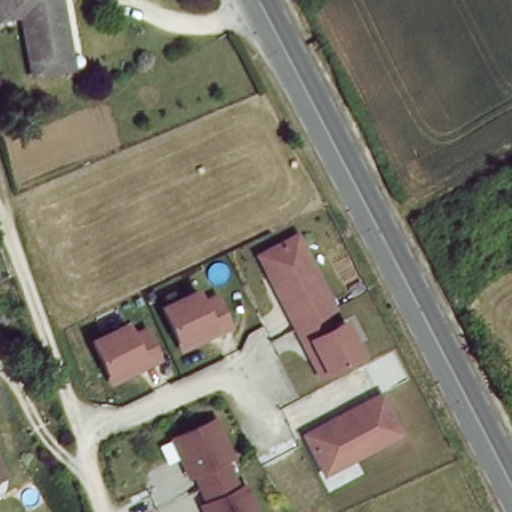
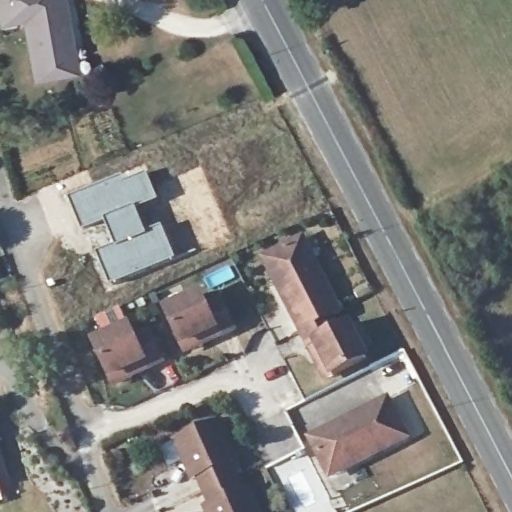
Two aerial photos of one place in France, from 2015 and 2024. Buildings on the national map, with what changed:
unchanged [(33,76),(21,0),(67,0),(75,39),(80,67),(70,69),(33,76)]
new [(122,173),(124,179),(145,170),(157,201),(137,210),(145,231),(162,225),(176,260),(108,288),(93,252),(110,244),(102,226),(81,233),(66,196),(122,173)]
unchanged [(338,308),(328,313),(300,329),(276,285),(261,257),(269,252),(298,237),(338,308)]
unchanged [(187,339),(170,306),(203,287),(209,300),(224,292),(239,320),(224,328),(191,346),(187,339)]
unchanged [(336,327),(348,321),(366,355),(333,372),(315,340),(308,344),(300,329),(328,313),(336,327)]
unchanged [(113,371),(95,337),(129,320),(135,331),(149,324),(164,352),(149,360),(117,377),(113,371)]
unchanged [(409,438),(330,474),(309,433),(390,396),(409,438)]
unchanged [(232,460),(225,462),(231,477),(237,492),(244,490),(253,512),(208,512),(199,490),(179,437),(217,422),(232,460)]
unchanged [(0,477),(0,451),(7,475),(0,477)]

